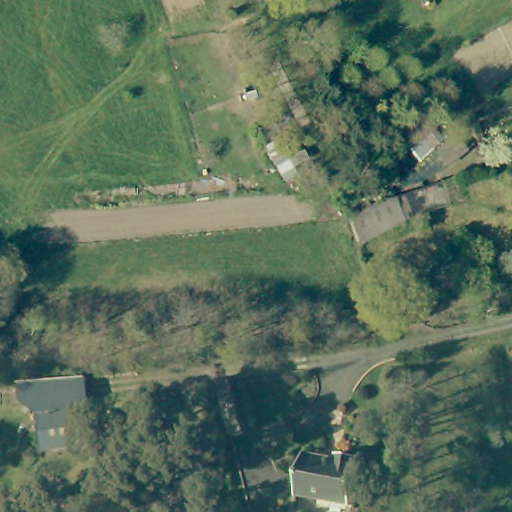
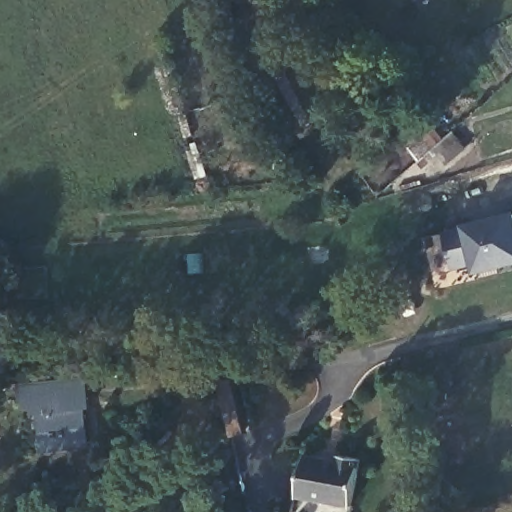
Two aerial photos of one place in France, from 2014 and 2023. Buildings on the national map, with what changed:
demolished [(391,200),(399,224),(356,249),(351,233),(348,222),(379,203),(391,200)]
new [(475,274),(472,265),(453,270),(443,230),(465,224),(512,212),(512,264),(475,274)]
unchanged [(219,380),(237,378),(245,425),(229,428),(219,380)]
unchanged [(71,399),(90,397),(93,428),(88,428),(91,461),(50,465),(47,435),(36,425),(35,420),(31,421),(29,402),(71,399)]
unchanged [(352,505),(299,496),(305,458),(337,462),(338,454),(361,457),(352,505)]

